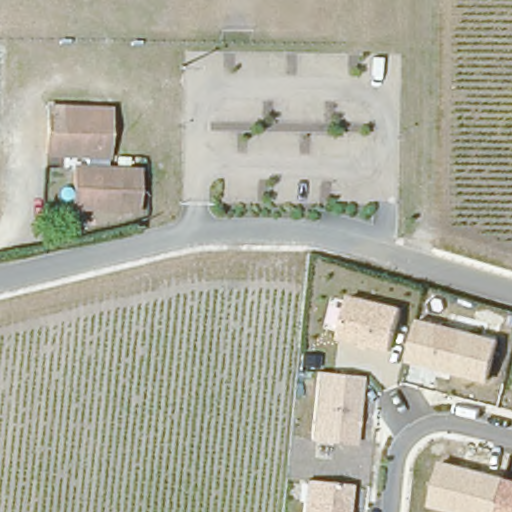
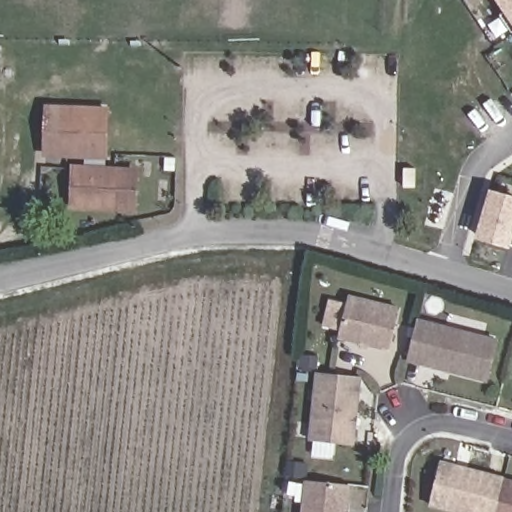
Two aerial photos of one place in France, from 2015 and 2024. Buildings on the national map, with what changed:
new [(498,0),(512,0),(512,21),(498,0)]
unchanged [(136,205),(72,202),(73,172),(85,172),(86,159),(65,159),(42,158),(43,147),(45,121),(45,111),(67,111),(91,111),(111,111),(110,122),(108,166),(137,167),(136,205)]
new [(512,197),(512,249),(478,240),(492,191),(512,197)]
unchanged [(392,352),(338,338),(350,296),(402,307),(392,352)]
unchanged [(490,383),(406,363),(418,318),(500,339),(490,383)]
unchanged [(358,446),(308,442),(316,371),(364,376),(358,446)]
unchanged [(447,512),(430,507),(442,460),(512,478),(512,512),(447,512)]
unchanged [(302,512),(305,480),(353,485),(351,512),(302,512)]

